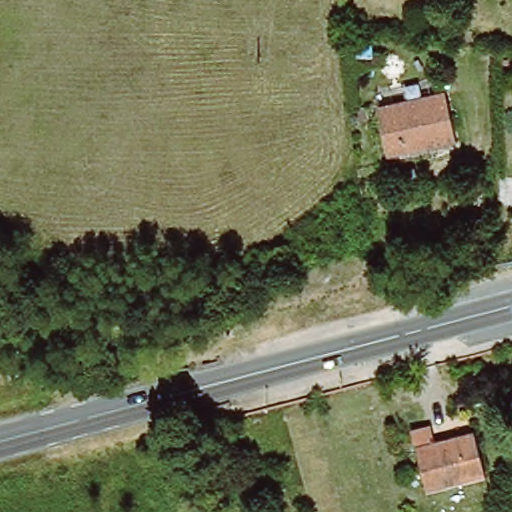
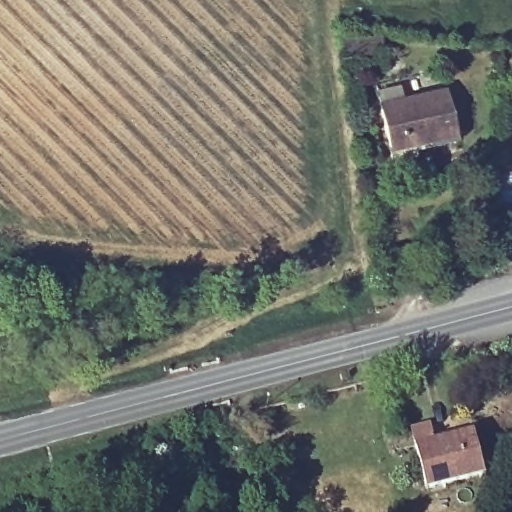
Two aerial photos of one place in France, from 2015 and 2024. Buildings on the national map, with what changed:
unchanged [(388,152),(379,107),(442,92),(452,137),(388,152)]
unchanged [(425,489),(410,430),(429,426),(433,440),(472,430),(483,474),(425,489)]

